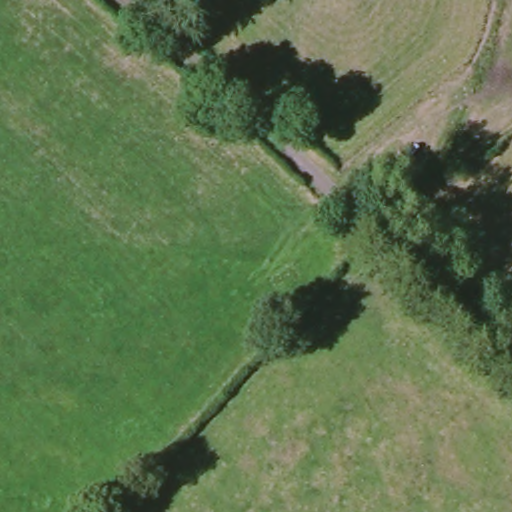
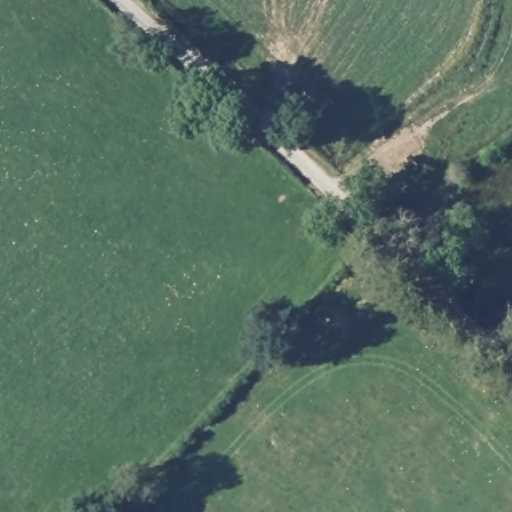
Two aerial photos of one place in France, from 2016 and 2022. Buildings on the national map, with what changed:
[]

